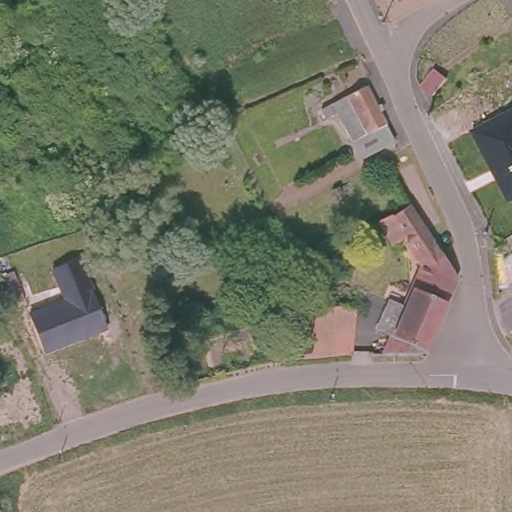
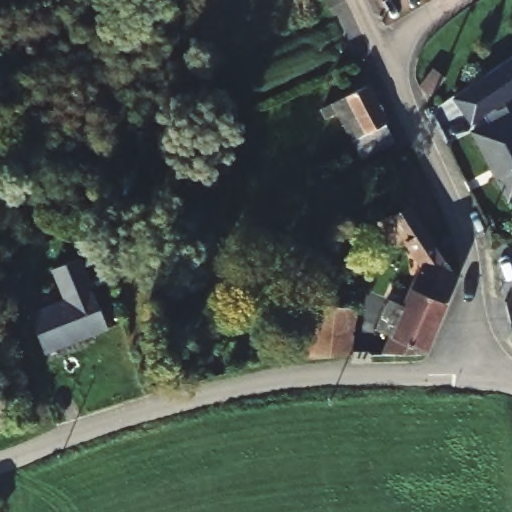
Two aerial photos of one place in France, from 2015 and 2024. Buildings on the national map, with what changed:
new [(471,124),(453,99),(512,58),(512,100),(508,103),(471,124)]
unchanged [(338,87),(333,90),(329,81),(335,79),(338,87)]
unchanged [(395,142),(364,159),(340,111),(326,119),(322,109),(367,86),(395,142)]
unchanged [(446,100),(429,105),(426,91),(443,86),(446,100)]
unchanged [(466,127),(508,103),(512,111),(512,198),(504,202),(466,127)]
unchanged [(411,203),(460,279),(427,353),(382,355),(390,336),(377,330),(390,300),(402,305),(420,265),(408,246),(397,252),(379,225),(377,222),(400,211),(411,203)]
unchanged [(65,296),(57,271),(56,266),(68,262),(69,268),(77,292),(65,296)]
unchanged [(92,333),(45,352),(31,313),(78,296),(92,333)]
unchanged [(357,313),(354,331),(351,356),(306,358),(309,328),(311,308),(339,311),(357,313)]

